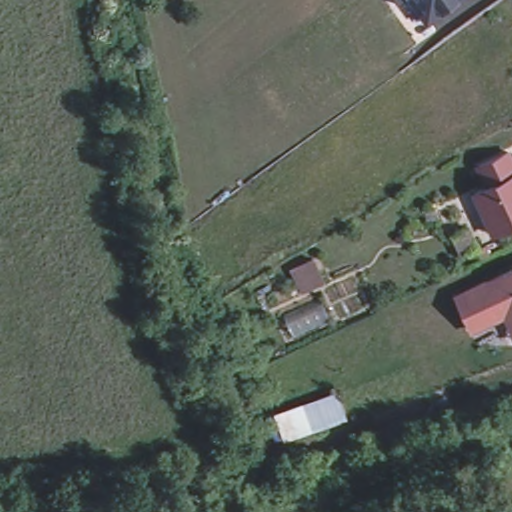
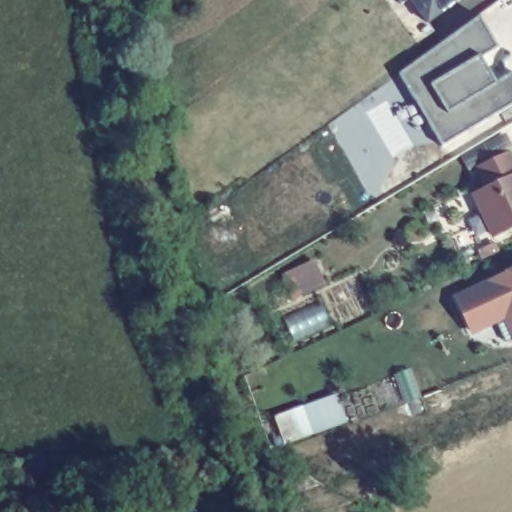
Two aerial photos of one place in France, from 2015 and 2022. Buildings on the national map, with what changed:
unchanged [(435,25),(416,1),(408,9),(401,0),(466,0),(435,25)]
new [(400,74),(478,16),(500,49),(482,60),(496,82),(512,73),(512,104),(442,144),(400,74)]
unchanged [(508,155),(512,163),(512,230),(494,238),(473,195),(487,189),(477,168),(508,155)]
unchanged [(295,260),(305,282),(282,291),(272,270),(295,260)]
unchanged [(504,327),(474,342),(457,308),(512,281),(512,343),(504,327)]
unchanged [(350,430),(311,441),(302,410),(340,400),(350,430)]

